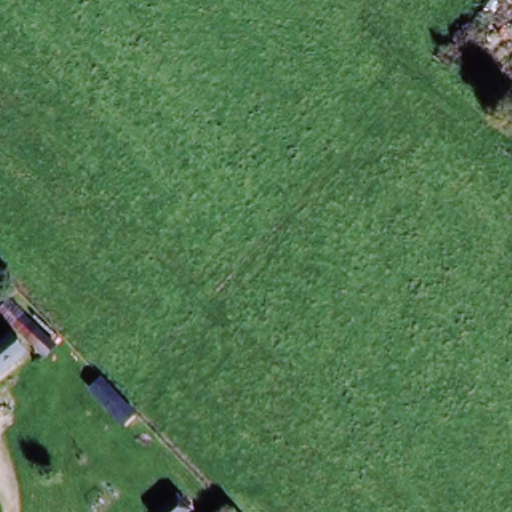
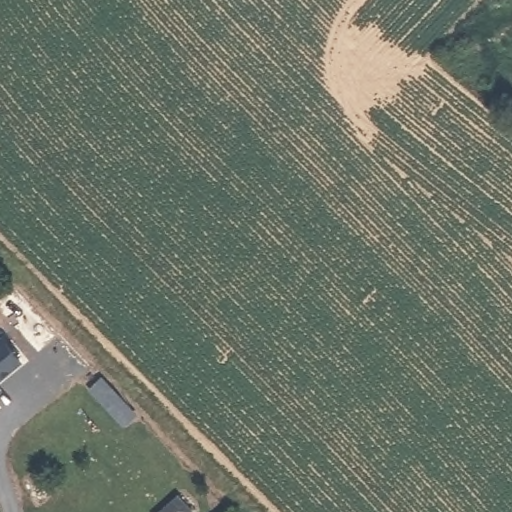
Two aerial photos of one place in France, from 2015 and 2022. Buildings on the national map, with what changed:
unchanged [(42,349),(0,304),(0,301),(9,292),(54,341),(42,349)]
unchanged [(0,364),(0,332),(10,325),(25,346),(0,364)]
unchanged [(186,505),(178,512),(151,512),(150,511),(172,490),(186,505)]

